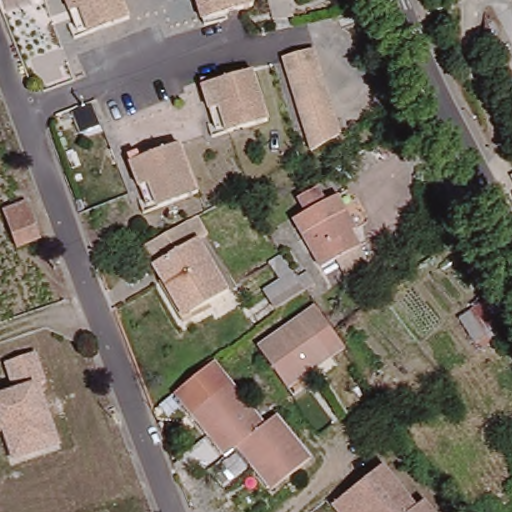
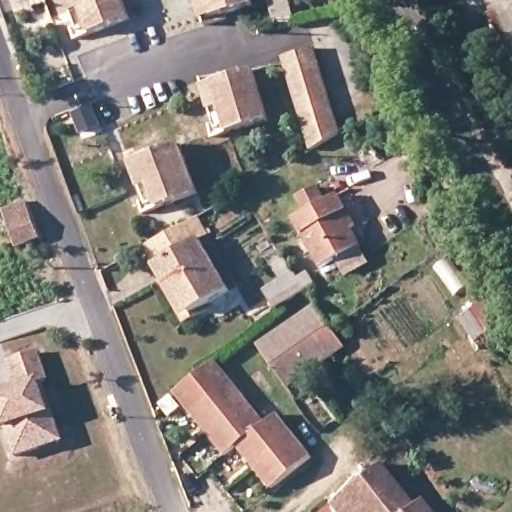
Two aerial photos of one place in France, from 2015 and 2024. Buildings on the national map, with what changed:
unchanged [(128,18),(91,32),(77,0),(121,0),(128,18)]
unchanged [(257,5),(213,18),(208,0),(255,0),(257,5)]
unchanged [(313,145),(285,53),(312,43),(341,129),(313,145)]
unchanged [(205,93),(200,95),(197,89),(252,71),(267,118),(224,132),(210,91),(205,93)]
unchanged [(127,157),(133,154),(135,161),(178,146),(195,197),(154,211),(148,213),(127,157)]
unchanged [(316,187),(325,203),(338,195),(347,213),(340,216),(352,236),(359,250),(319,274),(291,220),(305,212),(297,197),(316,187)]
unchanged [(38,233),(15,242),(2,209),(27,199),(38,233)]
unchanged [(460,243),(445,209),(457,204),(471,234),(460,243)]
unchanged [(156,280),(145,263),(201,232),(210,246),(204,250),(156,280)]
unchanged [(192,340),(165,297),(156,280),(204,250),(235,301),(197,327),(200,333),(192,340)]
unchanged [(278,308),(271,298),(304,275),(315,290),(288,311),(283,315),(278,308)]
unchanged [(512,289),(512,299),(510,300),(512,305),(512,308),(491,321),(504,340),(490,349),(465,312),(507,280),(512,289)]
unchanged [(333,356),(290,391),(257,349),(301,317),(333,356)]
unchanged [(0,396),(15,386),(10,364),(35,349),(60,443),(10,458),(0,421),(0,396)]
unchanged [(239,444),(230,450),(179,386),(218,356),(268,421),(239,444)]
unchanged [(314,453),(272,485),(239,444),(268,421),(280,411),(314,453)]
unchanged [(414,507),(427,498),(437,512),(338,512),(333,504),(383,466),(414,507)]

